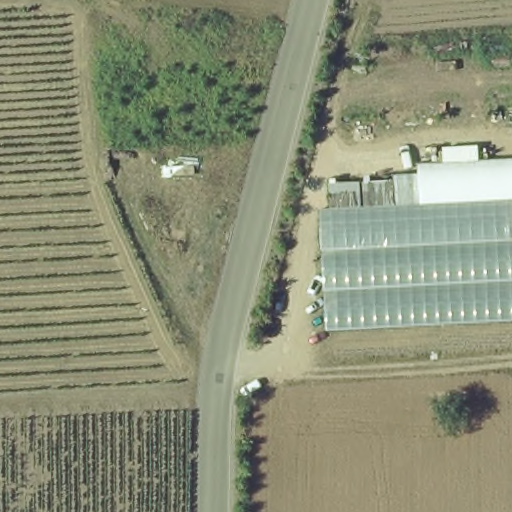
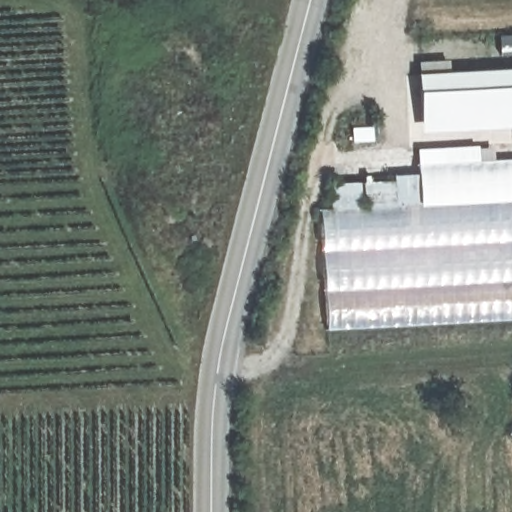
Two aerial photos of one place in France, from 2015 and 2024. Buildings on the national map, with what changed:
new [(446,1),(446,0),(462,0),(446,1)]
new [(422,134),(417,74),(512,69),(512,128),(422,134)]
unchanged [(423,202),(421,166),(421,162),(512,157),(512,197),(423,202)]
unchanged [(397,180),(398,204),(334,207),(333,184),(397,180)]
unchanged [(325,259),(322,208),(334,207),(398,204),(423,202),(512,197),(512,319),(330,329),(325,259)]

